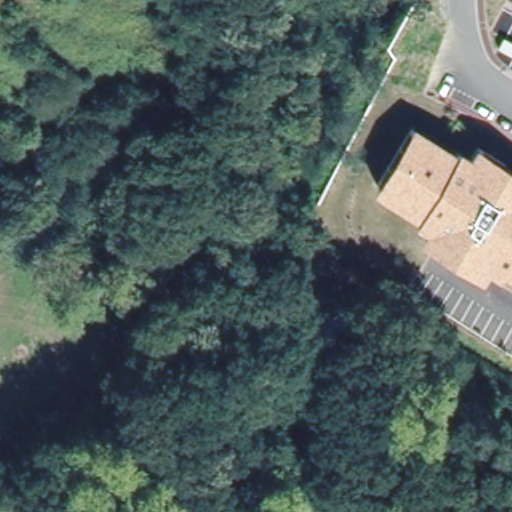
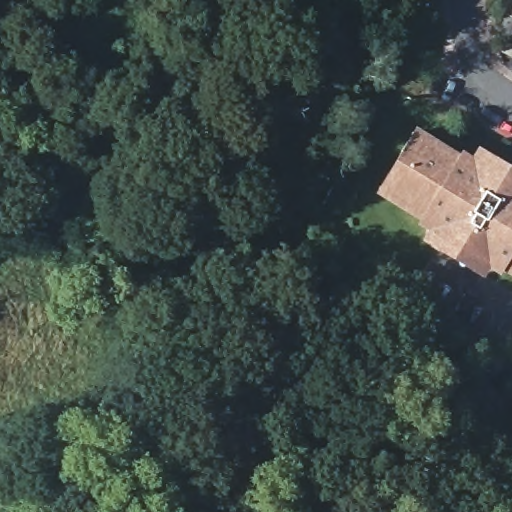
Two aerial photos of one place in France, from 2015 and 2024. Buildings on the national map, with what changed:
unchanged [(457,146),(468,154),(475,145),(512,168),(512,276),(500,268),(495,274),(487,269),(482,277),(418,239),(423,230),(413,223),(416,218),(375,190),(413,125),(455,149),(457,146)]

